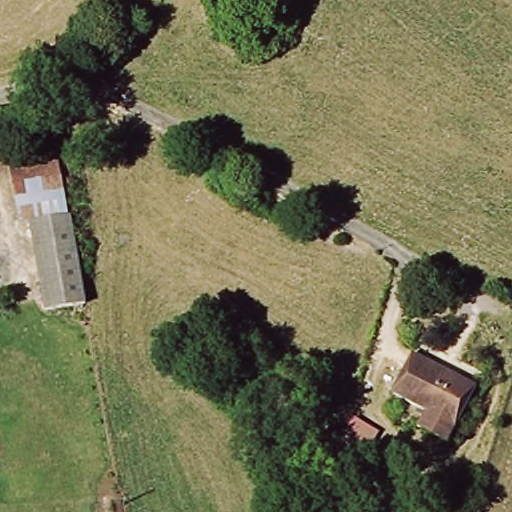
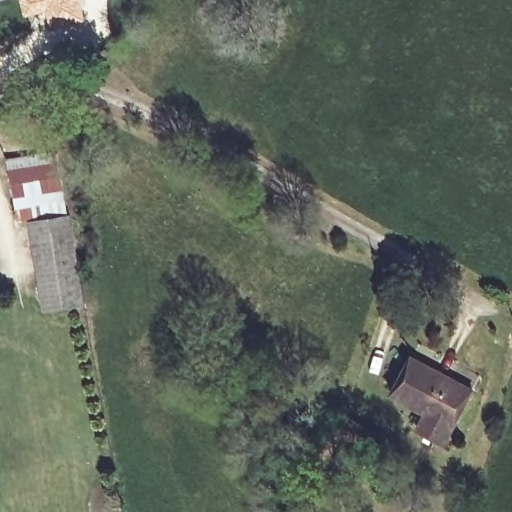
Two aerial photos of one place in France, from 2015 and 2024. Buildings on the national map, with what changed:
new [(42,26),(40,16),(26,20),(20,0),(84,0),(87,19),(42,26)]
unchanged [(53,158),(61,182),(26,193),(18,170),(53,158)]
unchanged [(71,203),(82,259),(87,291),(48,298),(32,210),(71,203)]
unchanged [(422,405),(401,397),(414,359),(475,380),(458,429),(418,415),(422,405)]

